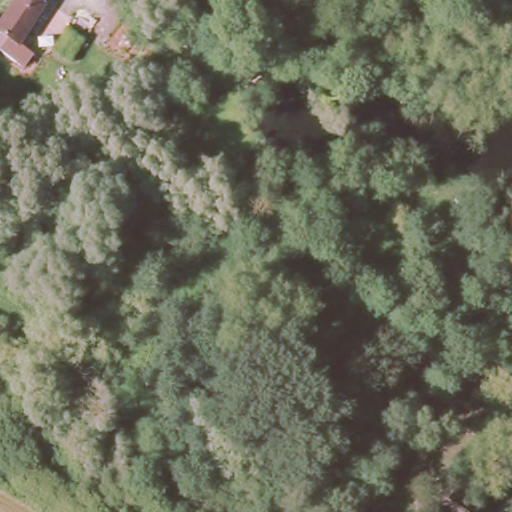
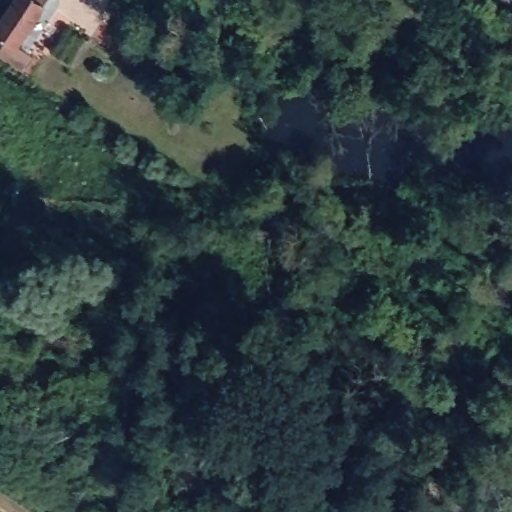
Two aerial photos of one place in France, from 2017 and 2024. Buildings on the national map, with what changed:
unchanged [(0,38),(0,22),(15,0),(55,0),(22,52),(0,38)]

